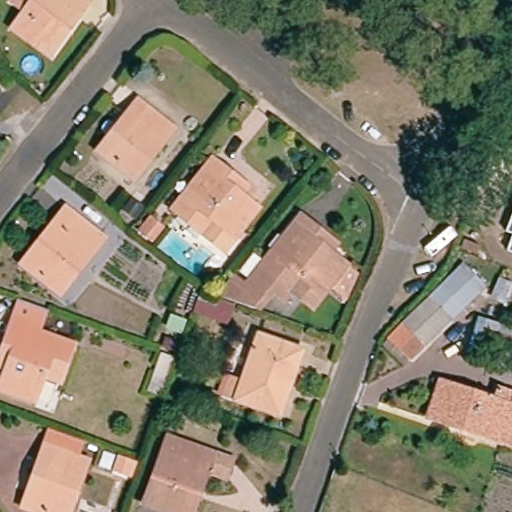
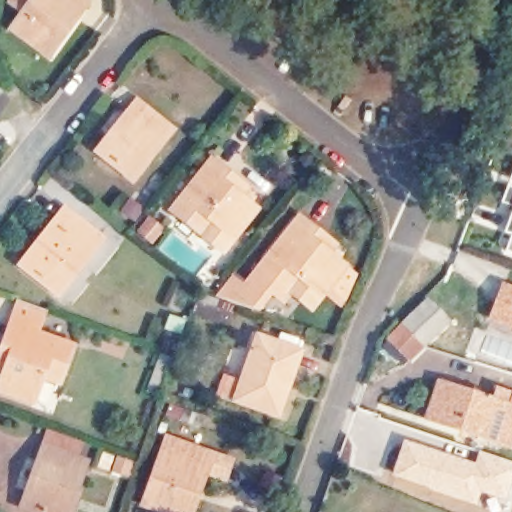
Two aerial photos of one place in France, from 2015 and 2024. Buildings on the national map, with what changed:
unchanged [(8,28),(19,13),(6,2),(7,0),(73,0),(81,5),(72,17),(53,42),(43,54),(8,28)]
unchanged [(176,132),(138,182),(100,154),(111,142),(128,119),(139,104),(176,132)]
unchanged [(206,235),(175,211),(215,161),(228,173),(252,191),(246,199),(259,209),(236,238),(227,251),(206,235)]
unchanged [(47,241),(70,214),(106,241),(61,295),(30,273),(24,267),(47,241)]
unchanged [(512,214),(512,235),(506,232),(512,214)]
unchanged [(286,288),(278,297),(264,286),(249,307),(216,295),(233,274),(249,288),(303,220),(317,231),(339,248),(333,255),(347,267),(325,296),(304,280),(293,292),(286,288)]
unchanged [(512,237),(512,254),(506,251),(512,237)]
unchanged [(476,303),(404,368),(379,339),(454,276),(476,303)]
new [(512,285),(512,329),(488,320),(502,281),(512,285)]
unchanged [(12,308),(28,313),(37,316),(29,337),(63,349),(50,387),(33,381),(24,404),(0,396),(0,341),(12,308)]
unchanged [(300,353),(278,415),(237,400),(260,338),(300,353)]
unchanged [(494,406),(499,395),(511,399),(494,447),(429,425),(442,388),(494,406)]
unchanged [(142,502),(165,437),(209,451),(229,459),(223,477),(203,470),(198,483),(188,512),(172,512),(142,502)]
new [(475,463),(479,451),(512,463),(512,479),(504,501),(482,493),(477,506),(391,474),(404,439),(475,463)]
unchanged [(86,464),(69,512),(38,512),(24,506),(29,491),(39,462),(43,448),(86,464)]

